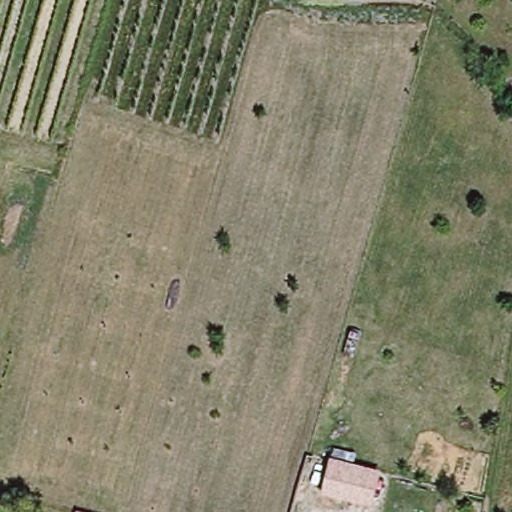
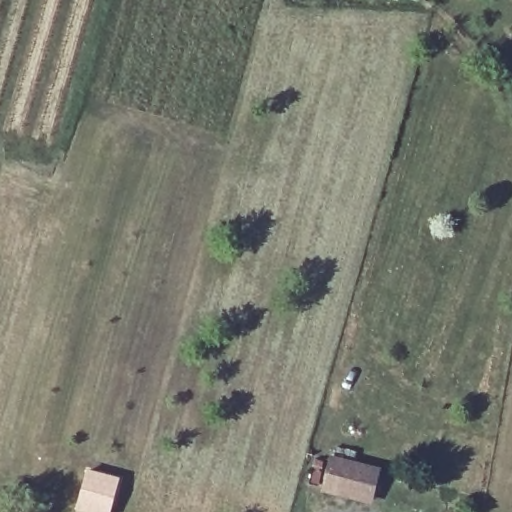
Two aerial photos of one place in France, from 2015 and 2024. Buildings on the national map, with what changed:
unchanged [(345,464),(337,495),(322,492),(332,460),(345,464)]
new [(115,481),(106,512),(77,512),(74,511),(85,472),(115,481)]

